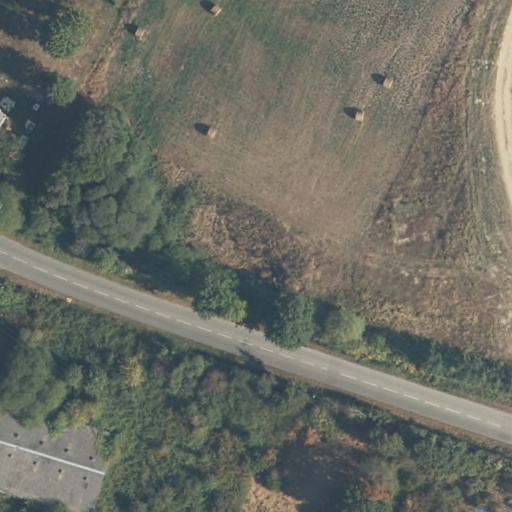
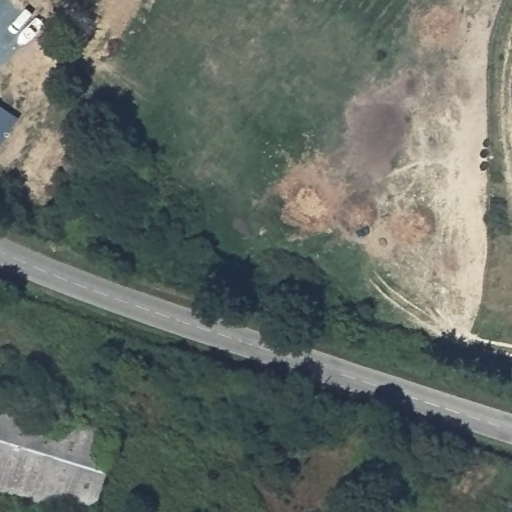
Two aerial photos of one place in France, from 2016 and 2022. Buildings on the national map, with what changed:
unchanged [(0,105),(0,101),(3,102),(0,105)]
unchanged [(119,431),(0,397),(0,386),(127,422),(124,432),(119,431)]
unchanged [(95,512),(89,512),(0,486),(0,397),(119,431),(95,512)]

